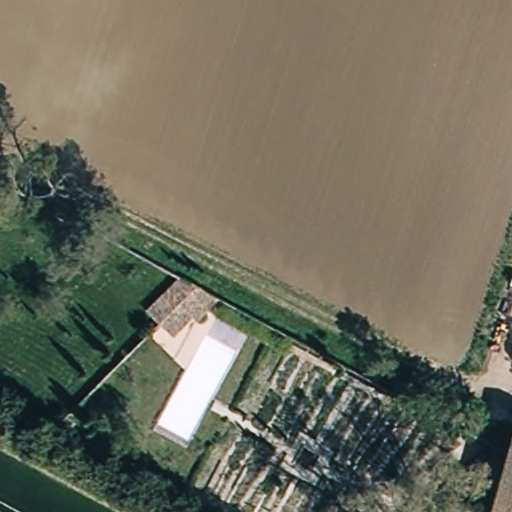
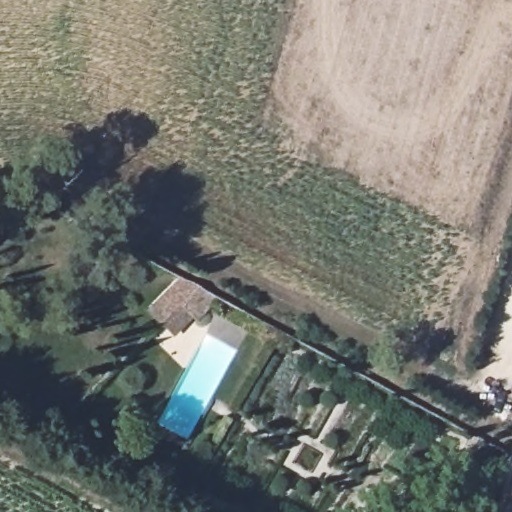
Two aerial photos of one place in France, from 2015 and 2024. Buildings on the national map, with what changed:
unchanged [(151,263),(194,289),(215,303),(190,325),(170,340),(156,325),(178,305),(141,285),(151,263)]
unchanged [(486,508),(492,508),(512,445),(512,512),(479,512),(481,510),(486,508)]

